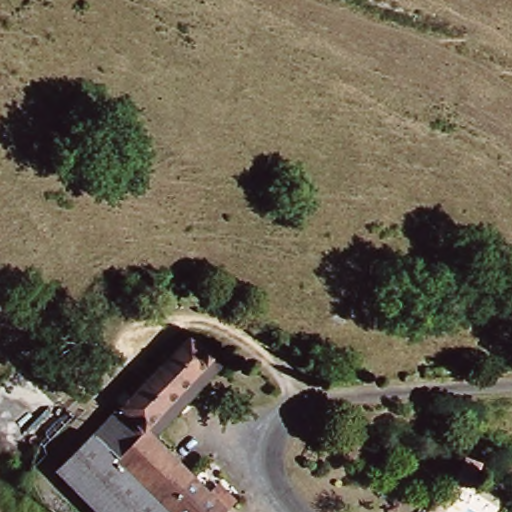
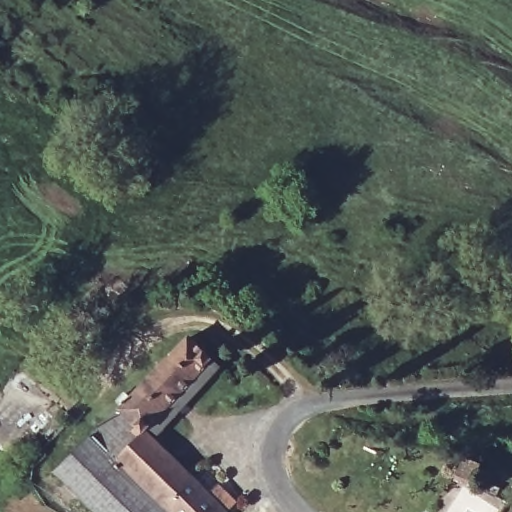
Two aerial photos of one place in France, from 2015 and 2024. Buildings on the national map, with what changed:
unchanged [(234,510),(233,512),(171,512),(103,440),(200,338),(221,358),(153,430),(202,479),(213,470),(243,500),(234,510)]
unchanged [(101,512),(65,478),(103,440),(171,512),(101,512)]

